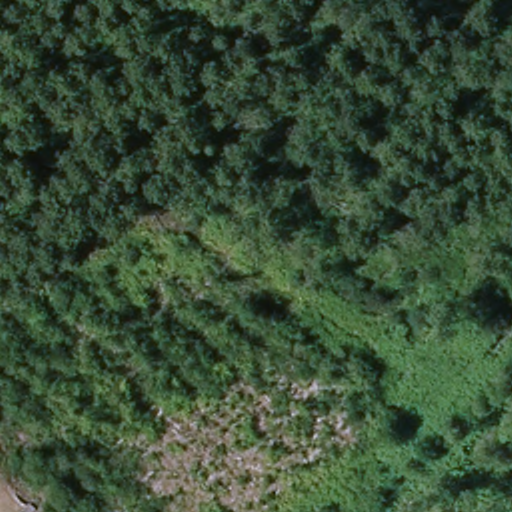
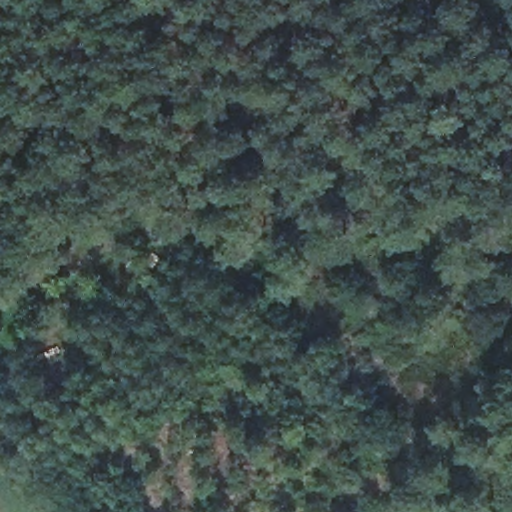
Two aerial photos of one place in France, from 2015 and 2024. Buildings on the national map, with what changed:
[]

